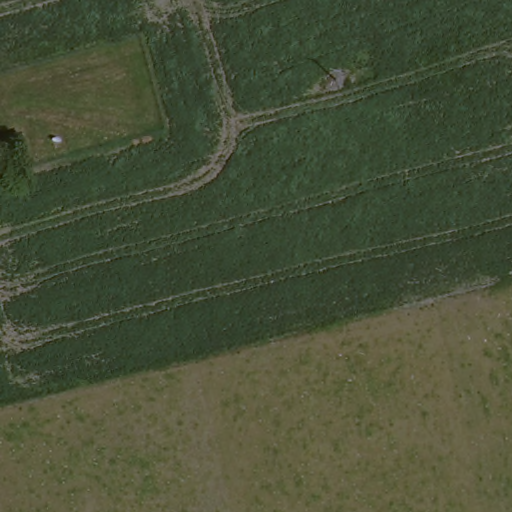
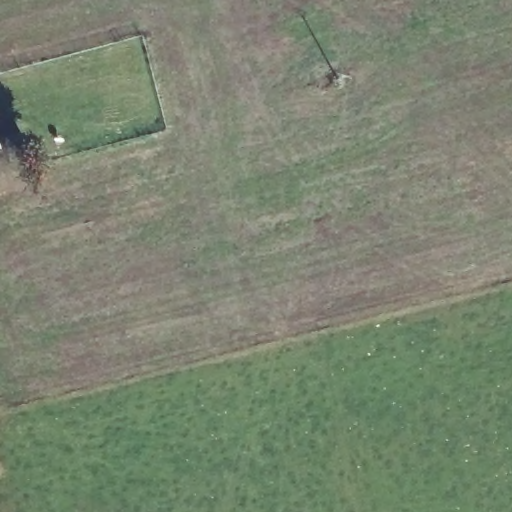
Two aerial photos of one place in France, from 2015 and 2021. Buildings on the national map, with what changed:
unchanged [(0,138),(23,132),(29,148),(0,154),(0,138)]

